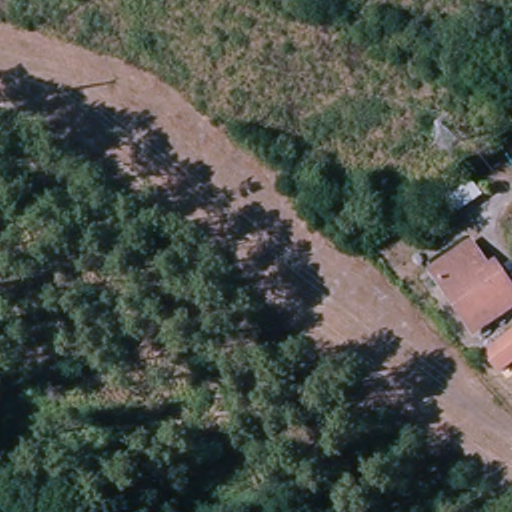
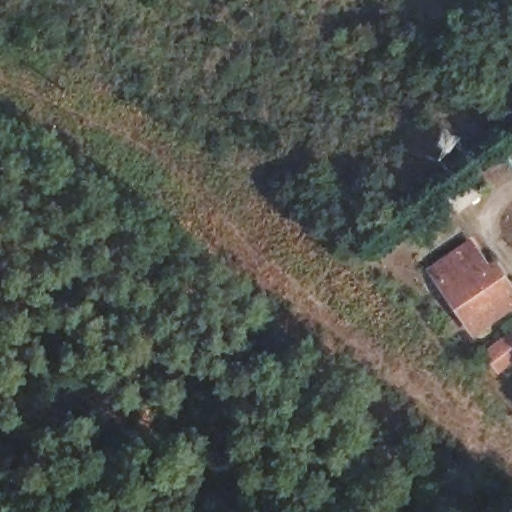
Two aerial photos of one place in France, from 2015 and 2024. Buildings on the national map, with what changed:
unchanged [(502,288),(512,301),(512,309),(475,337),(427,274),(463,247),(498,291),(502,288)]
unchanged [(483,353),(512,334),(512,367),(494,379),(483,353)]

